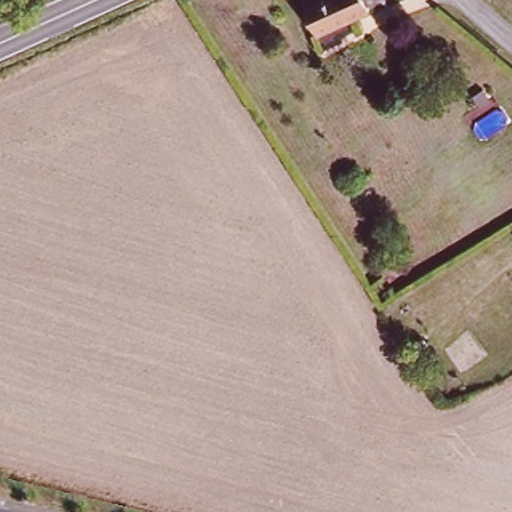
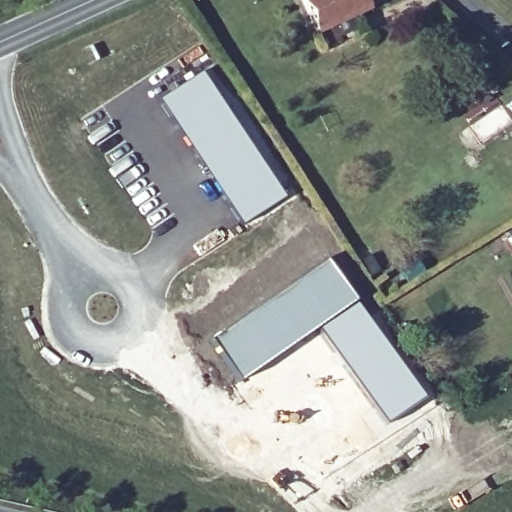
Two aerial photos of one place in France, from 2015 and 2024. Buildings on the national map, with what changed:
unchanged [(364,10),(313,34),(298,0),(360,0),(364,10)]
new [(202,72),(249,140),(285,197),(241,226),(201,162),(158,100),(202,72)]
new [(323,260),(354,302),(315,330),(238,384),(207,340),(323,260)]
new [(354,302),(424,399),(383,427),(315,330),(354,302)]

